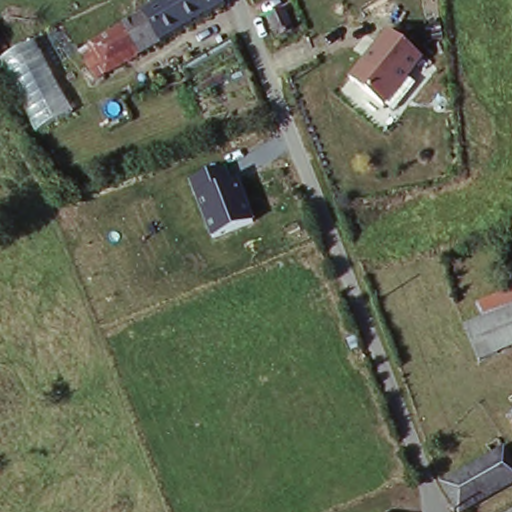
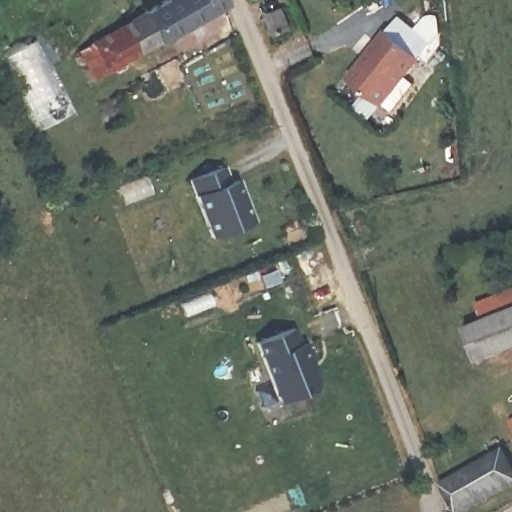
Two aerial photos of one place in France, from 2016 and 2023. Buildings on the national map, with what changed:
unchanged [(90,45),(169,0),(221,0),(225,7),(107,75),(95,82),(78,53),(90,45)]
unchanged [(276,9),(278,13),(286,11),(294,30),(280,36),(270,11),(276,9)]
unchanged [(422,58),(384,105),(347,75),(385,29),(422,58)]
unchanged [(35,133),(0,71),(0,60),(33,41),(73,111),(35,133)]
unchanged [(213,239),(191,182),(221,169),(227,183),(235,180),(253,222),(213,239)]
unchanged [(512,352),(482,366),(462,317),(512,294),(512,352)]
new [(257,343),(294,327),(320,389),(279,403),(257,343)]
unchanged [(512,422),(507,412),(512,409),(512,422)]
unchanged [(496,443),(504,462),(512,458),(512,488),(466,512),(454,512),(442,487),(491,461),(484,448),(496,443)]

